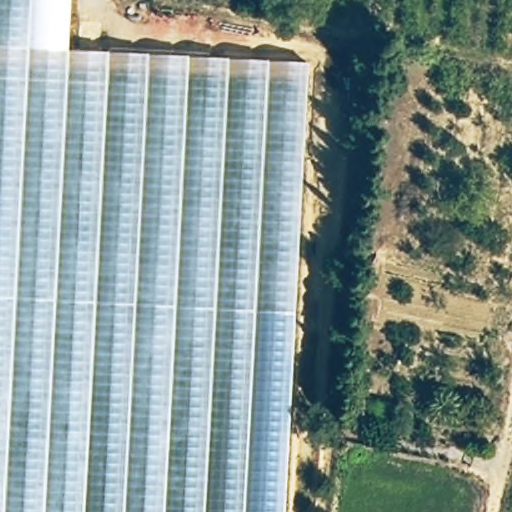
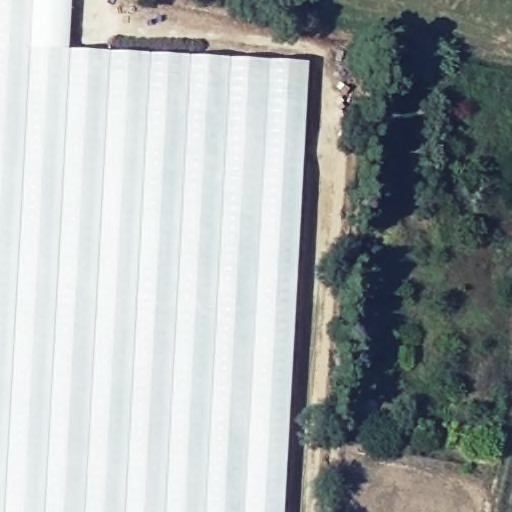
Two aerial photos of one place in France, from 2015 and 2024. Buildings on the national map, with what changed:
unchanged [(308,61),(283,512),(0,512),(0,0),(73,0),(71,48),(308,61)]

